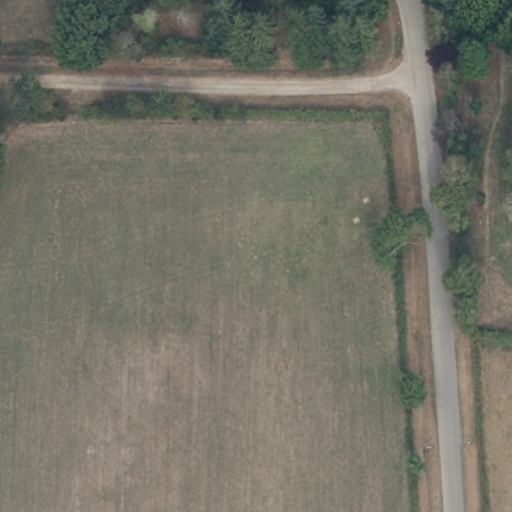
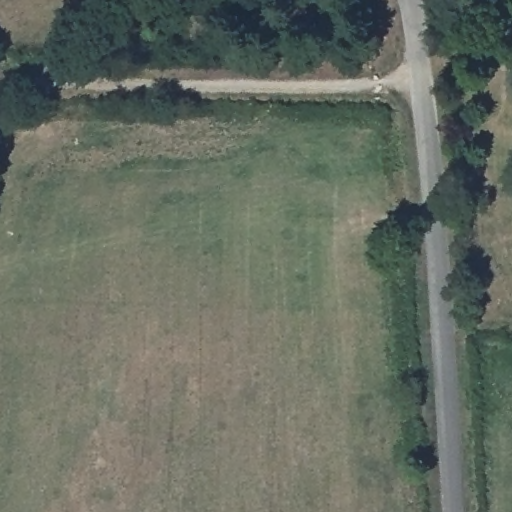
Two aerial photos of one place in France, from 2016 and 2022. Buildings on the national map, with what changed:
[]

